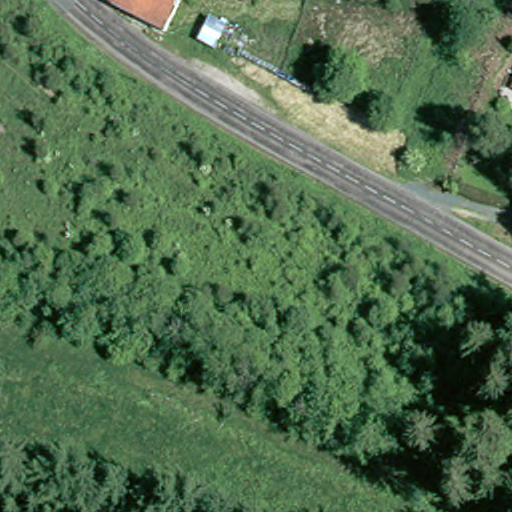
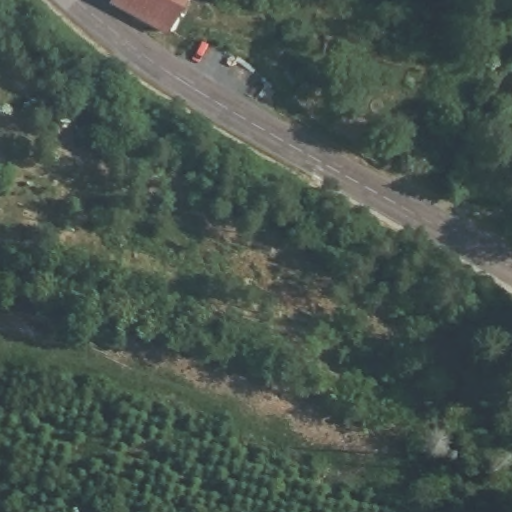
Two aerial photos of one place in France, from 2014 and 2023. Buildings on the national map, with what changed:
unchanged [(152,0),(174,0),(170,9),(152,0)]

